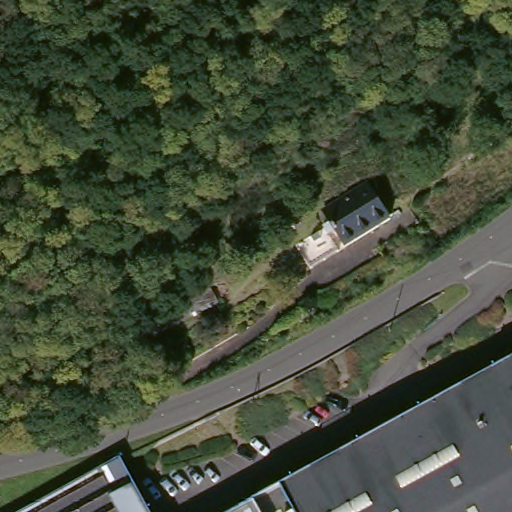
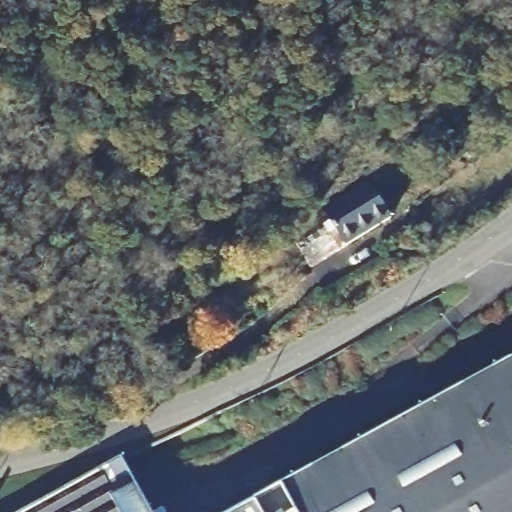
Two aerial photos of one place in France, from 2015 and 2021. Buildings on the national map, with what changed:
unchanged [(369,184),(391,216),(350,244),(328,210),(369,184)]
unchanged [(512,358),(512,512),(266,512),(258,497),(512,358)]
unchanged [(130,461),(157,512),(31,512),(111,470),(130,461)]
unchanged [(266,512),(231,512),(258,497),(266,512)]

